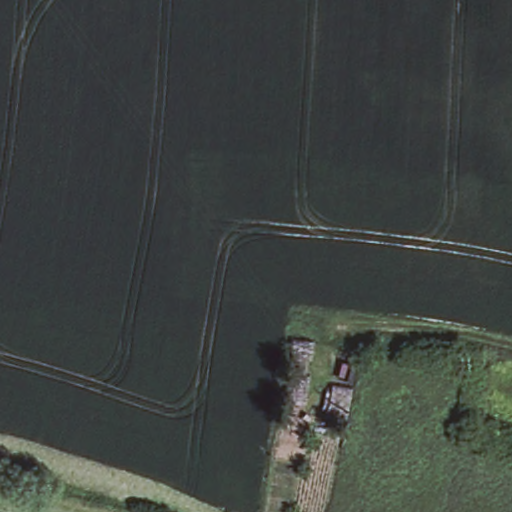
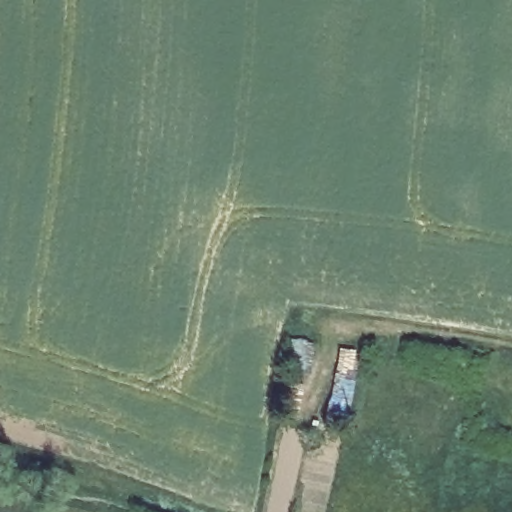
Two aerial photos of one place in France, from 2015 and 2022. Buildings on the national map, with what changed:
[]

